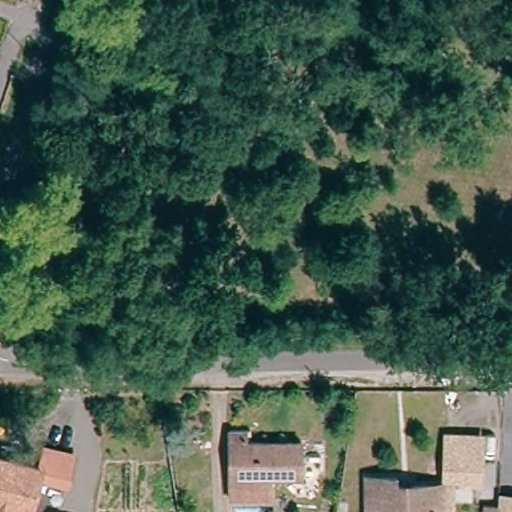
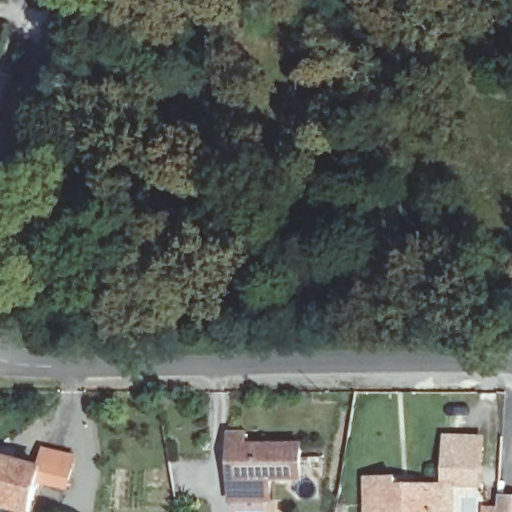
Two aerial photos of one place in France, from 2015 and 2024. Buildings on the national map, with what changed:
unchanged [(299,480),(267,478),(266,498),(226,496),(229,427),(246,428),(245,441),(301,444),(299,480)]
unchanged [(46,466),(52,467),(55,449),(80,454),(75,472),(72,486),(50,481),(42,512),(14,512),(0,509),(0,464),(43,472),(46,466)]
unchanged [(485,489),(485,496),(484,496),(451,494),(451,480),(451,474),(452,450),(486,452),(486,476),(485,482),(485,486),(485,489)]
unchanged [(371,487),(401,488),(401,496),(439,498),(456,498),(455,512),(370,512),(371,487)]
unchanged [(494,497),(512,498),(512,512),(493,512),(494,497)]
unchanged [(490,512),(480,512),(480,511),(490,512)]

